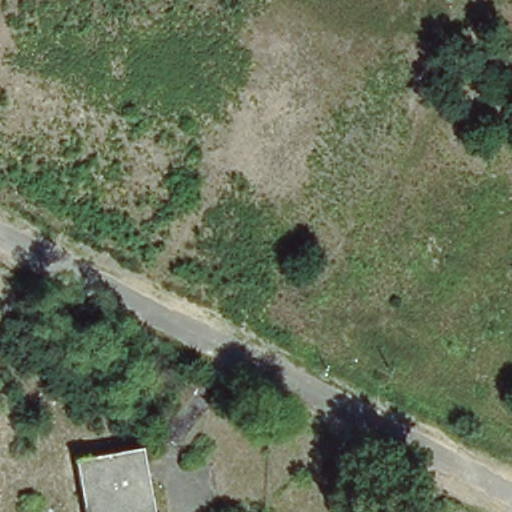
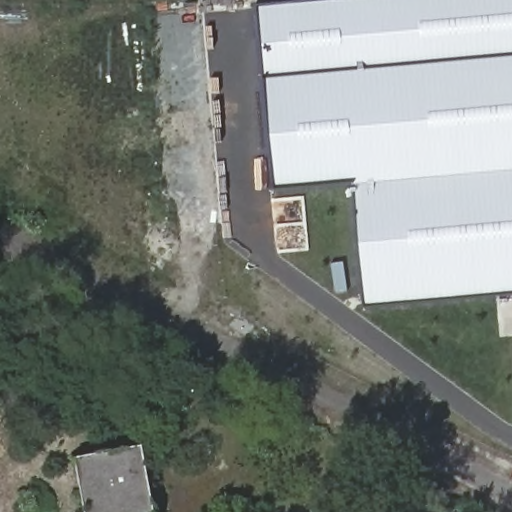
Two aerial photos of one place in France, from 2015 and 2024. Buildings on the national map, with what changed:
new [(512,298),(364,310),(355,190),(277,198),(258,12),(403,0),(512,0),(512,298)]
unchanged [(155,512),(85,512),(75,459),(142,447),(155,512)]
demolished [(457,506),(454,512),(446,512),(440,509),(445,500),(457,506)]

